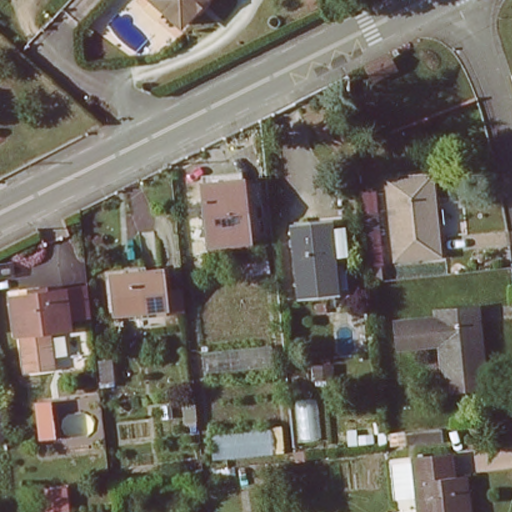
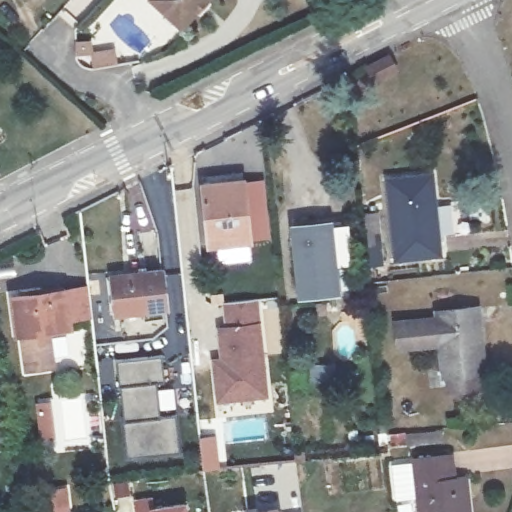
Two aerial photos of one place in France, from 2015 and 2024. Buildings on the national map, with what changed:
unchanged [(180,28),(152,0),(207,0),(180,28)]
unchanged [(207,247),(200,187),(224,184),(241,183),(242,187),(248,242),(207,247)]
unchanged [(428,186),(435,252),(391,255),(385,189),(428,186)]
unchanged [(297,295),(288,228),(319,224),(329,291),(297,295)]
unchanged [(127,321),(123,283),(171,279),(175,316),(127,321)]
unchanged [(98,331),(53,340),(59,370),(23,379),(8,302),(90,288),(98,331)]
new [(221,357),(221,323),(226,323),(226,302),(266,301),(269,396),(212,398),(211,357),(221,357)]
unchanged [(448,394),(445,377),(440,377),(437,347),(396,350),(393,323),(435,320),(434,311),(479,307),(484,373),(485,389),(448,394)]
new [(163,357),(165,382),(158,383),(160,419),(177,418),(180,453),(130,457),(120,361),(163,357)]
new [(113,362),(117,389),(103,390),(100,364),(113,362)]
demolished [(216,465),(213,439),(290,433),(289,458),(216,465)]
unchanged [(466,512),(417,512),(412,462),(462,459),(466,512)]
new [(153,512),(137,512),(135,505),(152,502),(153,512)]
new [(186,512),(153,512),(185,507),(186,512)]
new [(285,512),(264,512),(284,510),(285,512)]

